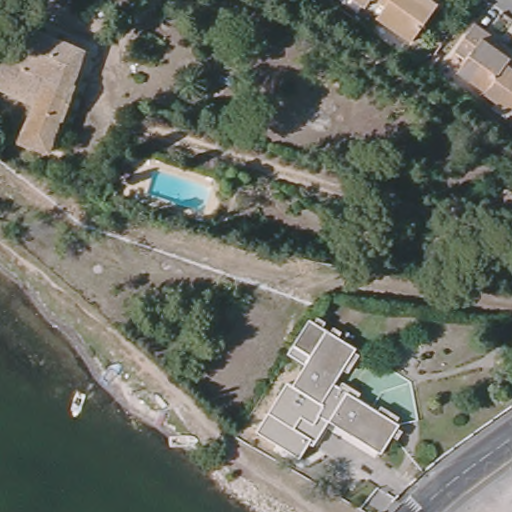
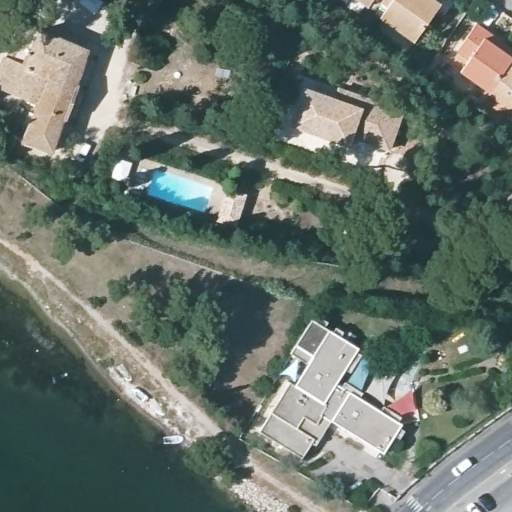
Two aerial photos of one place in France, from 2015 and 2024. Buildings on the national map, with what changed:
unchanged [(363,0),(370,0),(368,4),(363,0)]
unchanged [(387,3),(389,0),(441,0),(437,6),(415,36),(381,12),(387,3)]
unchanged [(382,0),(389,0),(387,3),(382,0)]
unchanged [(20,16),(87,44),(76,77),(79,78),(66,115),(63,114),(51,146),(23,136),(28,123),(25,121),(28,104),(35,104),(38,99),(0,82),(0,63),(20,16)]
unchanged [(485,91),(455,70),(464,58),(452,51),(472,24),(512,53),(485,91)]
unchanged [(512,53),(512,110),(485,91),(512,53)]
new [(303,85),(334,96),(338,86),(404,113),(390,151),(355,138),(351,146),(289,125),(290,122),(286,121),(303,85)]
unchanged [(350,385),(396,420),(374,451),(289,389),(311,358),(295,347),(309,321),(327,336),(365,363),(350,385)]
unchanged [(315,448),(310,446),(303,458),(262,430),(289,389),(332,420),(315,448)]

